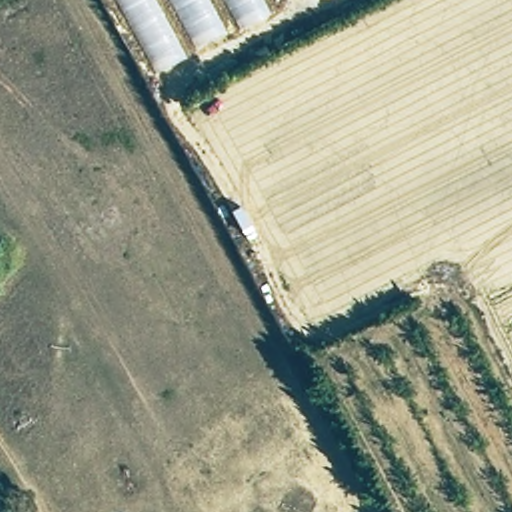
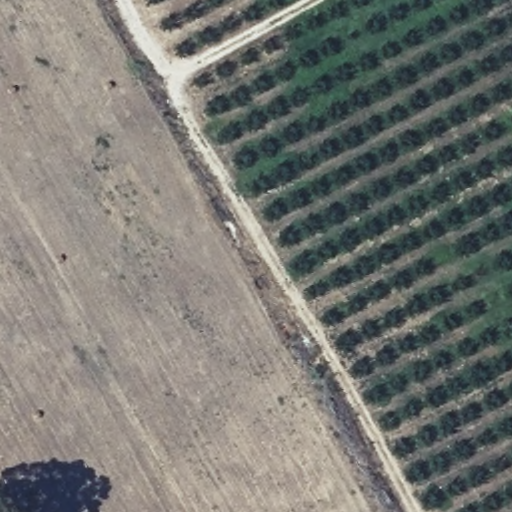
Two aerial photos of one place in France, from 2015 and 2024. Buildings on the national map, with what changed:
demolished [(147,73),(108,0),(263,0),(272,17),(147,73)]

